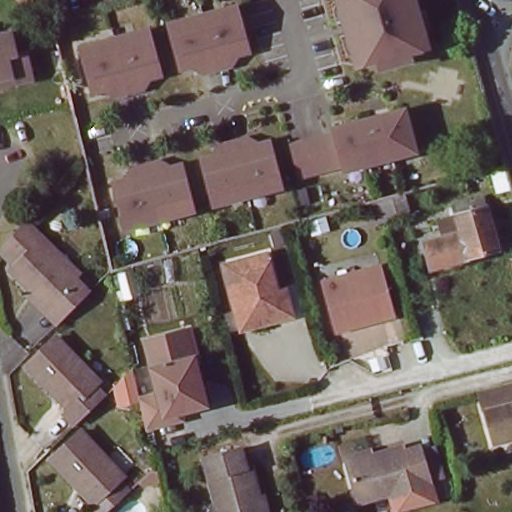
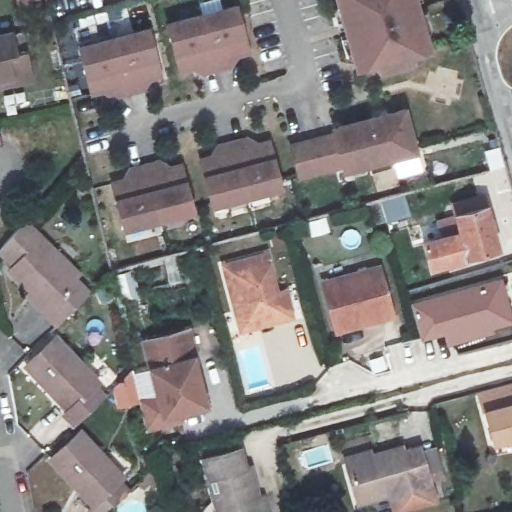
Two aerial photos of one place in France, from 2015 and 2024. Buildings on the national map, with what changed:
unchanged [(417,51),(422,67),(391,76),(386,60),(365,66),(347,0),(420,0),(433,46),(417,51)]
unchanged [(247,59),(227,62),(228,71),(208,74),(206,66),(186,70),(177,23),(239,11),(247,59)]
unchanged [(0,90),(0,34),(12,31),(17,51),(27,49),(34,78),(13,83),(14,87),(0,90)]
unchanged [(160,85),(140,89),(142,97),(121,101),(119,92),(99,96),(90,49),(152,38),(160,85)]
unchanged [(341,126),(339,117),(412,104),(422,160),(305,181),(297,134),(341,126)]
unchanged [(212,159),(232,155),(230,147),(251,143),(253,152),(273,148),(282,195),(220,206),(212,159)]
unchanged [(123,179),(144,175),(142,167),(163,163),(164,172),(185,168),(194,215),(132,226),(123,179)]
unchanged [(396,218),(392,219),(371,226),(364,205),(387,200),(390,199),(396,218)]
unchanged [(468,217),(501,207),(503,207),(512,237),(512,250),(434,274),(424,240),(445,234),(471,226),(468,217)]
unchanged [(29,292),(35,287),(12,265),(17,261),(3,248),(29,220),(43,233),(83,270),(78,276),(93,290),(67,318),(61,323),(29,292)]
unchanged [(288,324),(246,335),(230,272),(281,259),(291,296),(297,322),(288,324)]
unchanged [(365,322),(341,328),(328,279),(387,264),(399,313),(384,317),(383,316),(366,320),(365,322)]
new [(512,308),(512,325),(447,347),(444,335),(420,342),(409,301),(502,275),(512,308)]
unchanged [(214,408),(165,418),(148,342),(198,332),(214,408)]
unchanged [(58,411),(64,406),(23,365),(53,334),(94,376),(89,381),(100,392),(69,422),(58,411)]
unchanged [(489,438),(480,406),(475,388),(512,379),(512,444),(492,449),(489,438)]
unchanged [(82,511),(87,508),(46,463),(77,434),(118,477),(114,480),(125,491),(103,512),(83,512),(82,511)]
unchanged [(402,443),(403,448),(419,444),(429,481),(356,501),(344,459),(342,454),(368,447),(368,451),(369,453),(402,443)]
unchanged [(266,512),(215,512),(201,461),(239,450),(244,469),(248,467),(256,499),(262,497),(266,512)]

